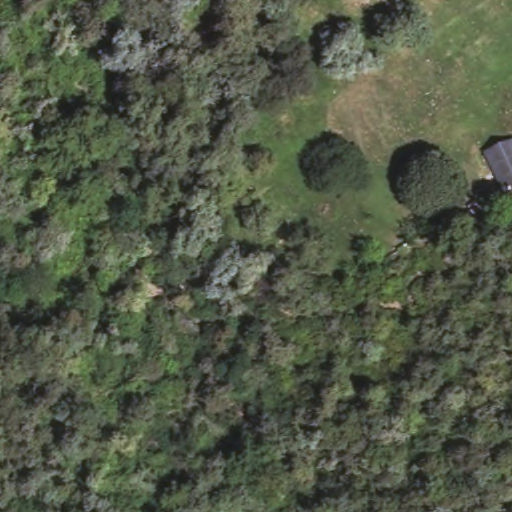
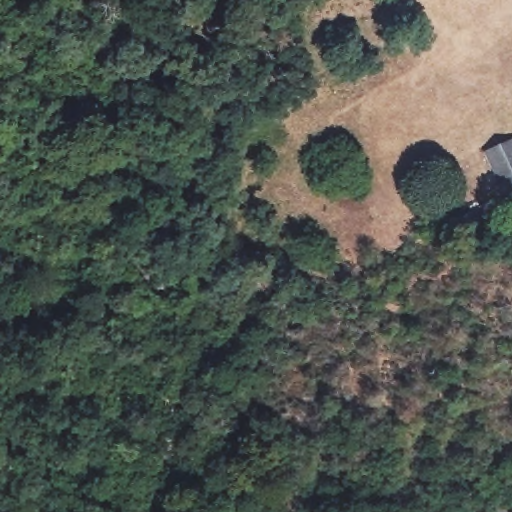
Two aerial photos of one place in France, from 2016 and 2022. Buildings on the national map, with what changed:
unchanged [(499,201),(476,151),(512,137),(512,195),(499,201)]

